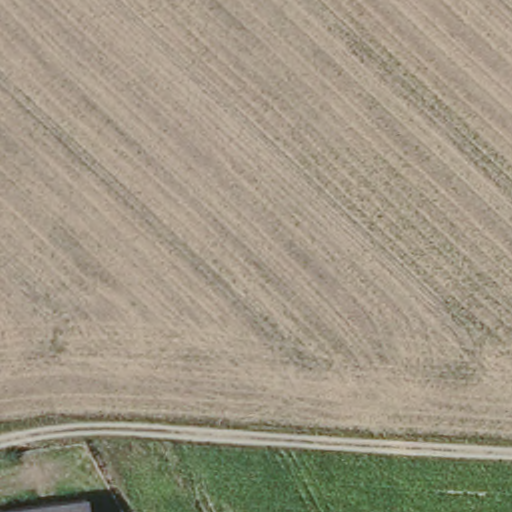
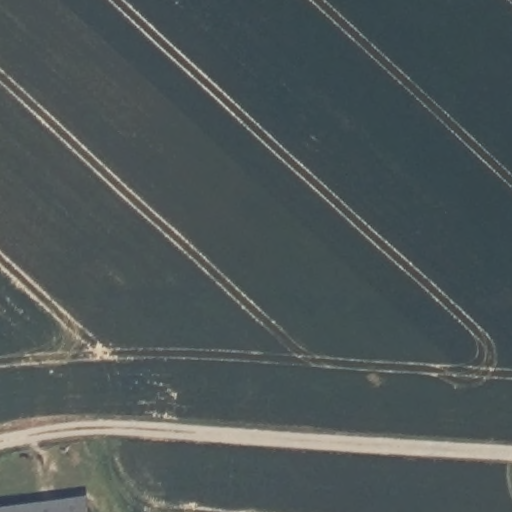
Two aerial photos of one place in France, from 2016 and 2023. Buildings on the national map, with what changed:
unchanged [(82,512),(0,512),(0,506),(81,501),(82,512)]

